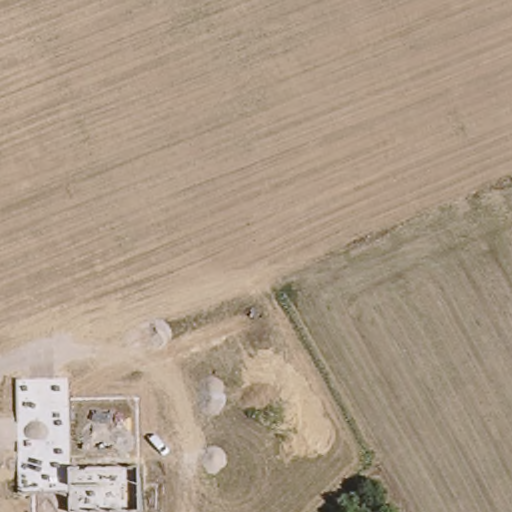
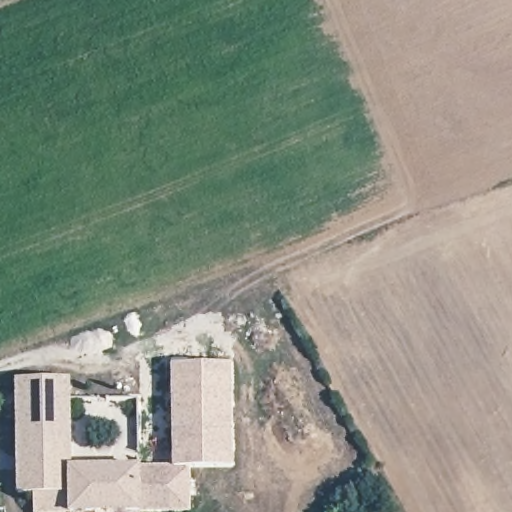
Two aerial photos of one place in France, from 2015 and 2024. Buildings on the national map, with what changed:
new [(189,467),(172,467),(172,364),(229,364),(231,466),(189,467)]
new [(66,464),(137,463),(139,512),(64,512),(63,494),(15,496),(11,381),(63,379),(66,464)]
new [(139,512),(137,466),(172,467),(189,467),(190,512),(139,512)]

